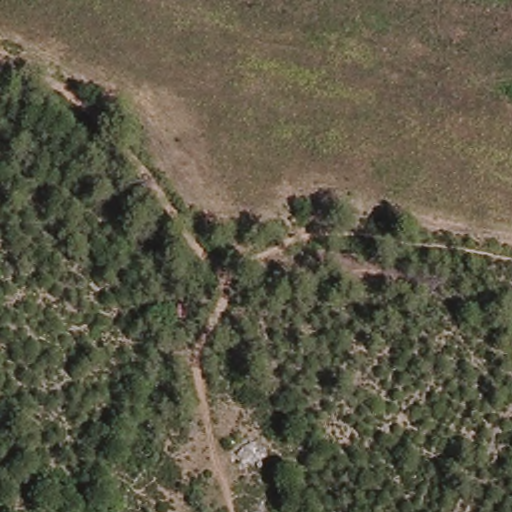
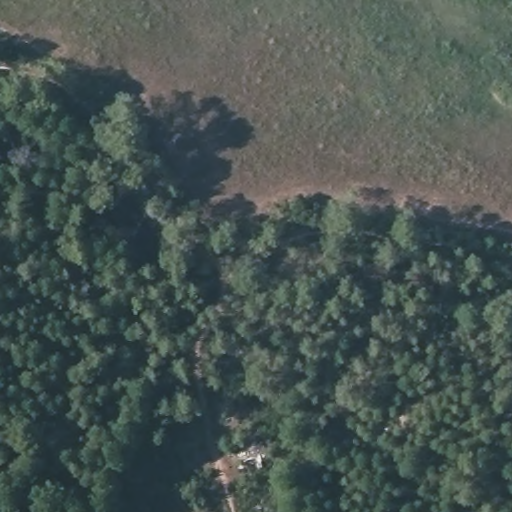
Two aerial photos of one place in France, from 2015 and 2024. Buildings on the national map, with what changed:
unchanged [(259,445),(265,463),(246,469),(240,451),(259,445)]

